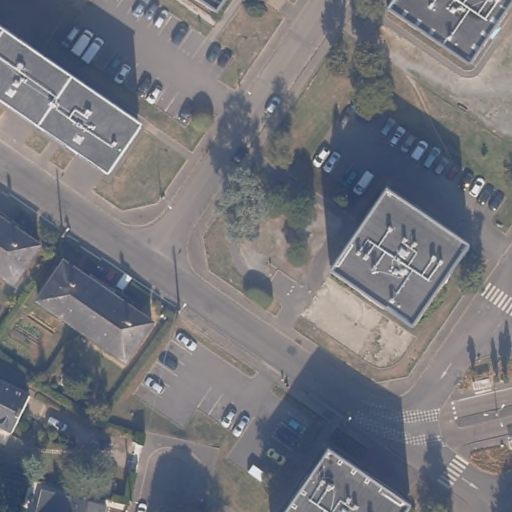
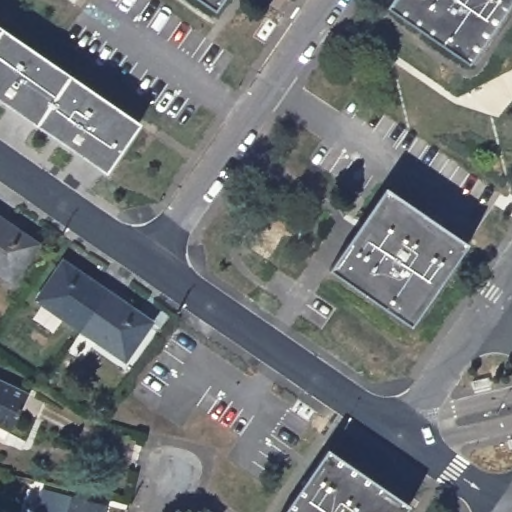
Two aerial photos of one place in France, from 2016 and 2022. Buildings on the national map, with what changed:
unchanged [(216,6),(207,0),(220,0),(216,6)]
unchanged [(470,60),(389,3),(391,0),(510,0),(470,60)]
unchanged [(109,166),(0,91),(0,25),(139,120),(109,166)]
unchanged [(466,244),(411,323),(330,267),(385,189),(466,244)]
unchanged [(40,242),(12,280),(0,271),(0,215),(40,242)]
unchanged [(81,327),(37,296),(64,260),(107,290),(81,327)]
unchanged [(152,320),(124,357),(81,327),(107,290),(152,320)]
unchanged [(29,391),(10,430),(0,426),(0,377),(29,391)]
unchanged [(403,512),(284,512),(329,447),(410,502),(403,512)]
unchanged [(65,493),(101,502),(97,512),(26,512),(32,485),(65,493)]

